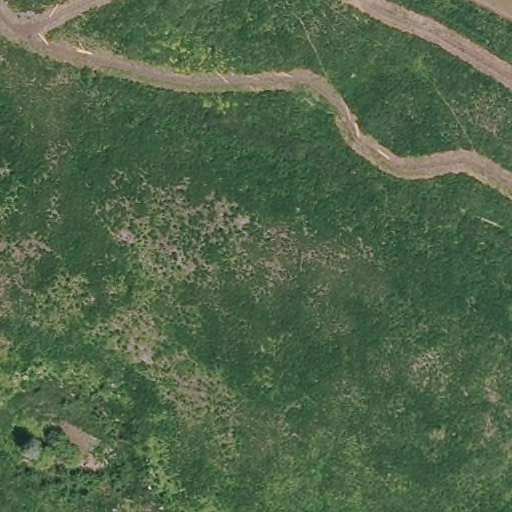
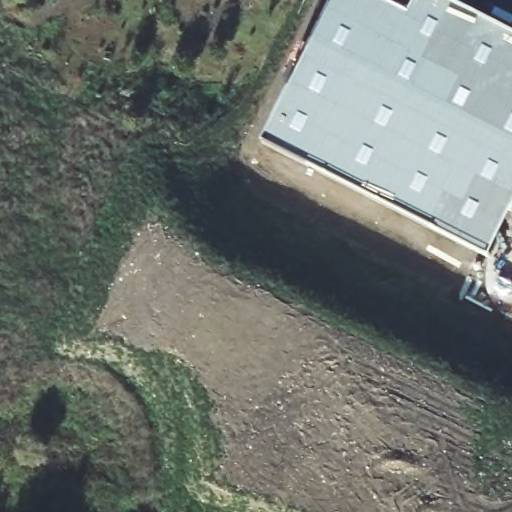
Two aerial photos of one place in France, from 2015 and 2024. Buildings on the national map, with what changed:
new [(262,141),(335,0),(449,0),(512,32),(512,212),(490,257),(262,141)]
demolished [(512,142),(302,45),(321,0),(512,0),(512,142)]

